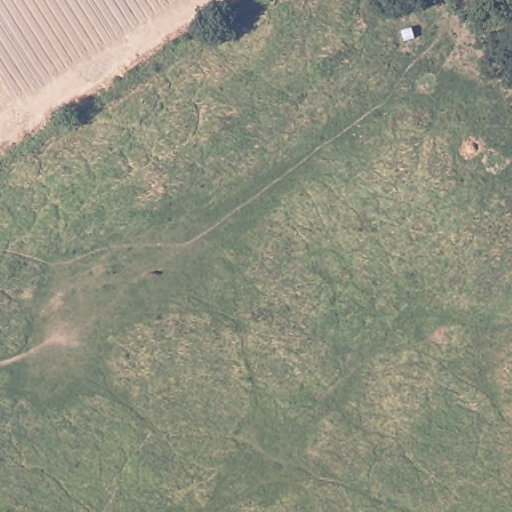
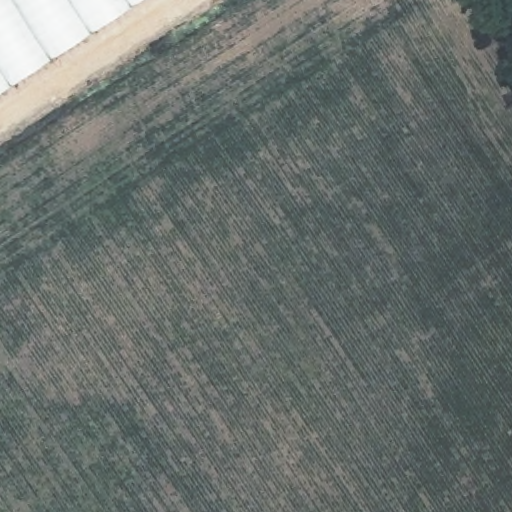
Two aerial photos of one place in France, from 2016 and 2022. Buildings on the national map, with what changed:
new [(139,0),(0,90),(0,0),(139,0)]

